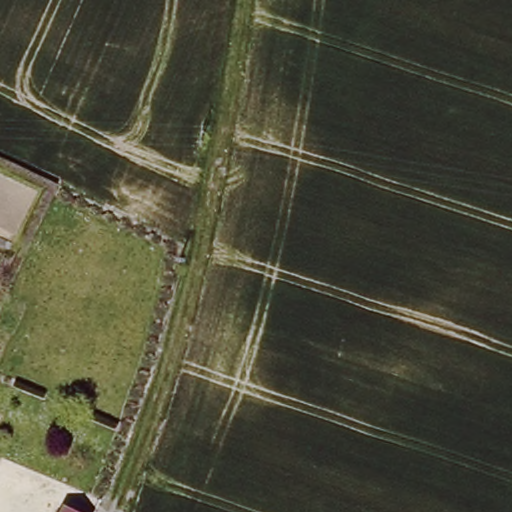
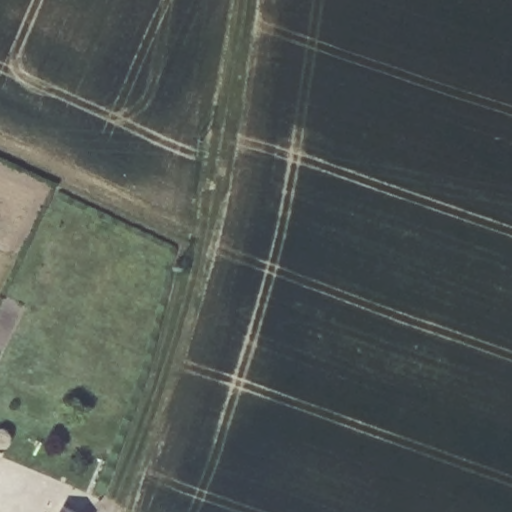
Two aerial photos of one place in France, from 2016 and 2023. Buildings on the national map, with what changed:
unchanged [(67,511),(69,512),(66,512),(67,511)]

